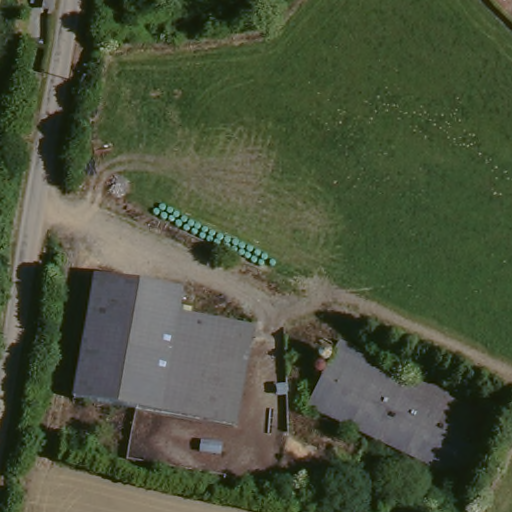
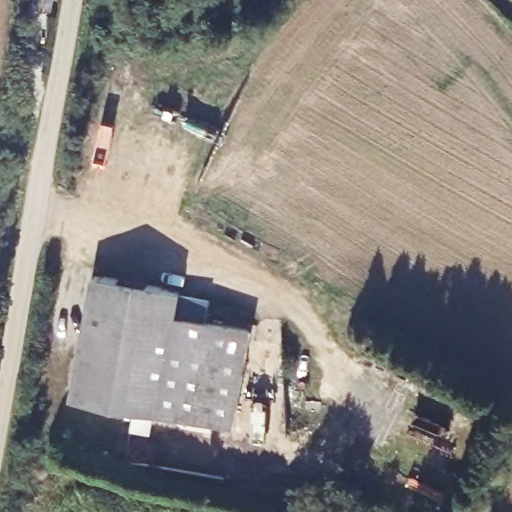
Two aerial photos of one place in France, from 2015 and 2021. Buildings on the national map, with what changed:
unchanged [(51,16),(29,17),(31,0),(53,0),(51,16)]
unchanged [(73,405),(94,278),(183,291),(178,321),(254,332),(234,432),(73,405)]
demolished [(302,401),(328,348),(483,421),(459,476),(302,401)]

